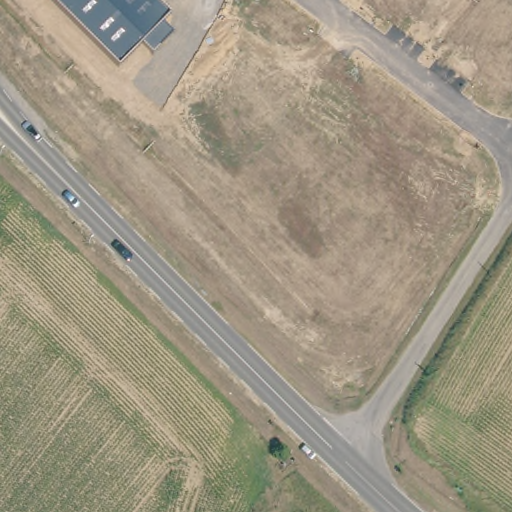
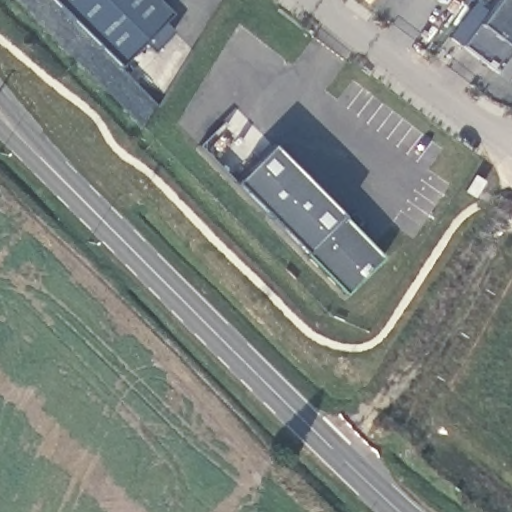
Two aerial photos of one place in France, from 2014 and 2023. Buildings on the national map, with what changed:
unchanged [(163,22),(174,31),(154,53),(142,41),(119,66),(52,0),(158,0),(172,13),(163,22)]
new [(441,0),(440,1),(439,0),(441,0)]
new [(496,71),(461,45),(477,23),(495,0),(512,0),(512,51),(496,71)]
new [(344,293),(303,251),(234,180),(271,144),(341,214),(382,256),(344,293)]
new [(473,175),(482,181),(472,197),(463,191),(473,175)]

